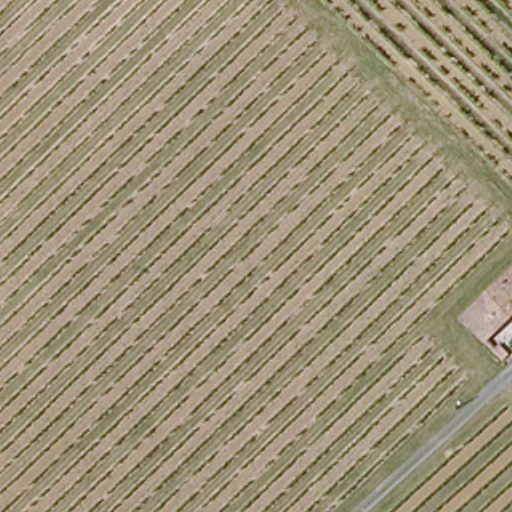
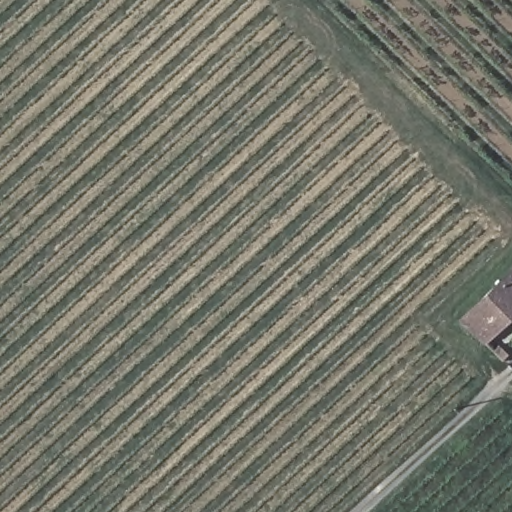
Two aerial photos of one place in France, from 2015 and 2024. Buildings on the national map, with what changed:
unchanged [(485,347),(457,321),(512,268),(512,319),(485,347)]

